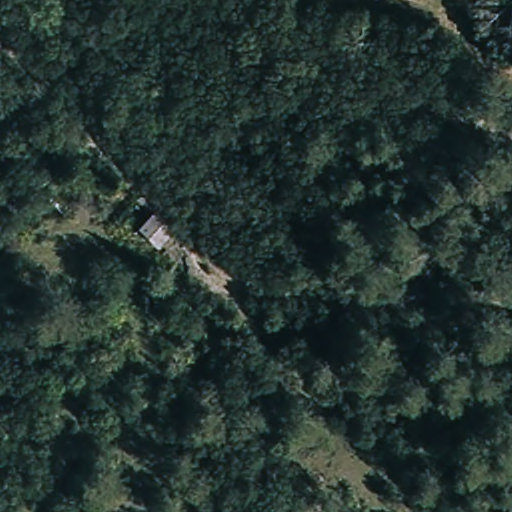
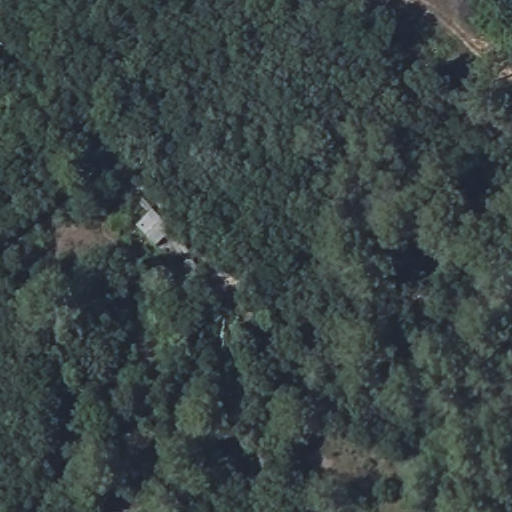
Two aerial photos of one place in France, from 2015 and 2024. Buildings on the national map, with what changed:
unchanged [(168,229),(152,245),(133,228),(151,210),(168,229)]

